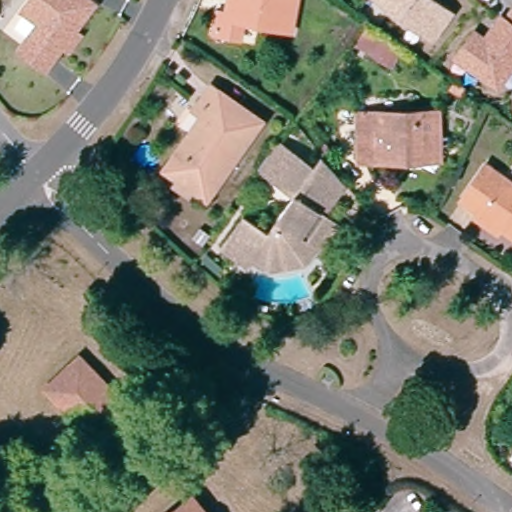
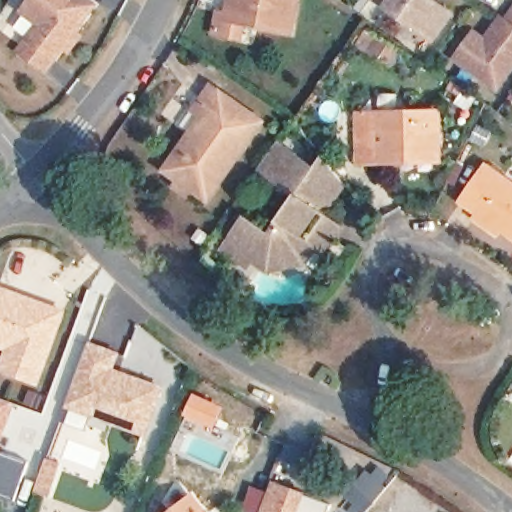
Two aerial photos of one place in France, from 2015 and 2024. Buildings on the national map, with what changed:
unchanged [(66,51),(60,47),(43,71),(18,52),(39,23),(21,11),(29,0),(88,0),(91,2),(72,31),(78,35),(66,51)]
unchanged [(237,18),(234,32),(215,29),(219,10),(226,11),(228,0),(295,0),(290,27),(257,22),(237,18)]
unchanged [(447,9),(429,35),(379,0),(434,0),(447,9)]
unchanged [(512,22),(512,21),(512,75),(503,88),(462,59),(480,34),(491,42),(507,19),(512,22)]
unchanged [(379,62),(357,49),(370,27),(392,41),(379,62)]
unchanged [(192,190),(188,196),(174,187),(179,181),(164,171),(198,122),(189,116),(197,105),(207,91),(239,114),(256,125),(249,135),(205,199),(192,190)]
unchanged [(393,161),(354,161),(354,113),(434,114),(434,151),(434,162),(393,161)]
unchanged [(231,262),(214,250),(238,217),(265,236),(290,201),(259,179),(251,172),(269,147),(279,154),(308,174),(315,164),(340,193),(329,210),(339,216),(334,225),(320,242),(312,236),(295,257),(264,272),(247,261),(240,269),(231,262)]
unchanged [(469,220),(476,210),(457,197),(481,162),(512,184),(512,237),(503,230),(497,239),(469,220)]
new [(47,302),(64,308),(36,378),(1,365),(9,345),(0,342),(0,284),(30,296),(47,302)]
demolished [(158,443),(122,477),(25,375),(61,341),(158,443)]
new [(65,417),(71,402),(94,341),(121,351),(113,375),(116,367),(123,370),(165,385),(148,431),(75,403),(69,419),(65,417)]
new [(0,447),(0,399),(15,404),(0,447)]
new [(14,500),(0,495),(0,450),(29,461),(14,500)]
new [(252,485),(269,491),(273,481),(332,502),(328,512),(250,512),(243,510),(252,485)]
unchanged [(173,512),(192,496),(205,512),(173,512)]

